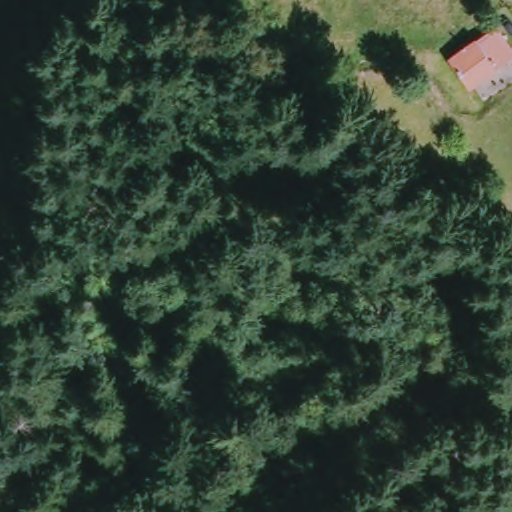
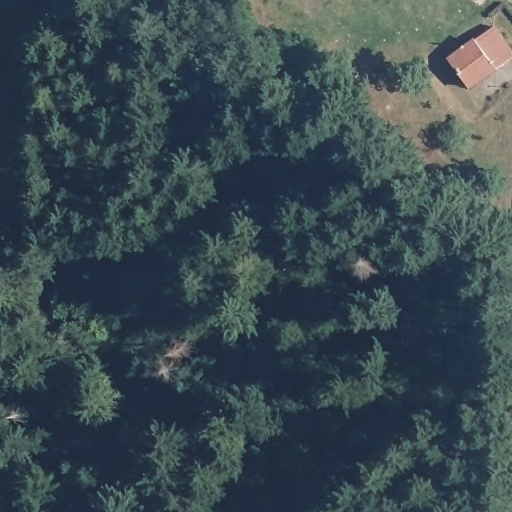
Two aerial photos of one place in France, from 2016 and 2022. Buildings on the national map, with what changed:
unchanged [(483,93),(457,67),(495,27),(512,44),(512,63),(483,93)]

